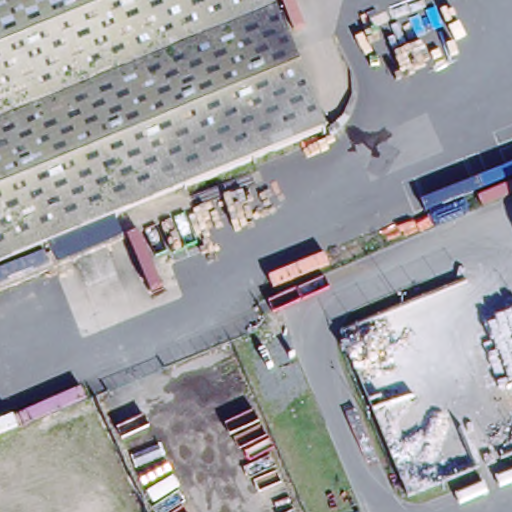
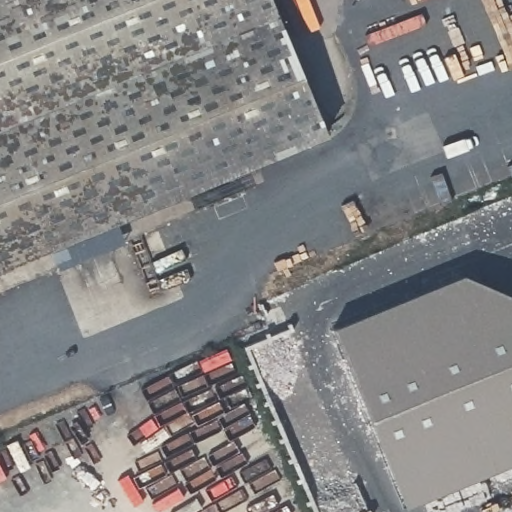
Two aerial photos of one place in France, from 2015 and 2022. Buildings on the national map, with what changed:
unchanged [(0,265),(0,0),(274,0),(327,129),(0,265)]
demolished [(386,218),(416,205),(429,235),(398,248),(386,218)]
new [(464,275),(512,295),(512,464),(405,506),(333,329),(464,275)]

